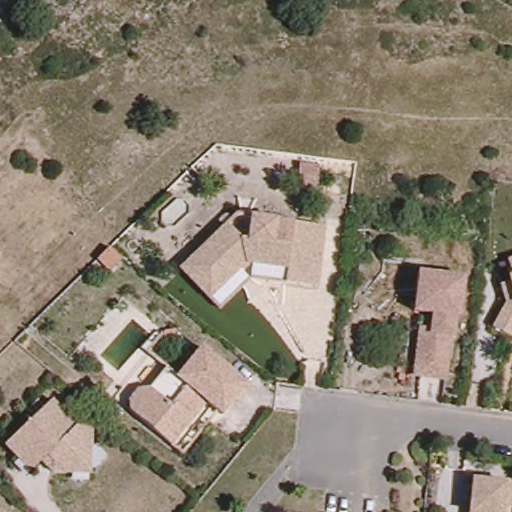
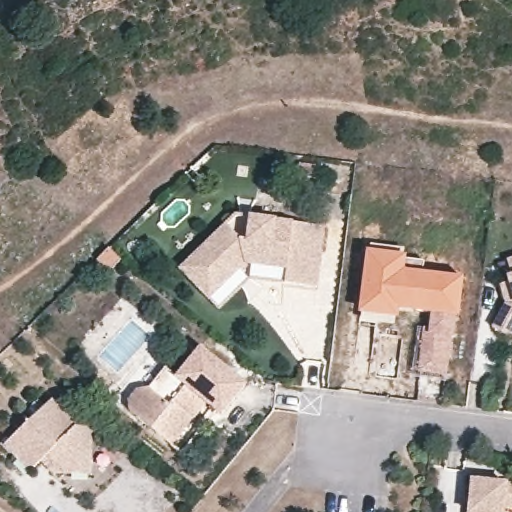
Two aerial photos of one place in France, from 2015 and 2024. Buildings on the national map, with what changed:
unchanged [(311,287),(281,283),(283,268),(241,263),(204,298),(176,268),(221,225),(231,215),(246,217),(319,226),(311,287)]
new [(413,273),(409,310),(400,309),(398,319),(361,314),(368,250),(369,241),(407,245),(407,257),(425,262),(424,275),(413,273)]
unchanged [(510,337),(491,329),(503,301),(500,290),(498,282),(508,279),(507,275),(510,274),(506,258),(512,256),(512,331),(510,337)]
unchanged [(409,378),(415,332),(426,334),(428,318),(408,317),(413,273),(465,281),(459,322),(448,382),(409,378)]
unchanged [(170,448),(129,414),(128,402),(136,392),(148,391),(166,370),(178,379),(201,352),(245,390),(221,418),(216,414),(181,457),(170,448)]
unchanged [(30,471),(5,445),(51,400),(76,426),(91,426),(91,437),(90,465),(80,465),(70,473),(53,473),(41,461),(30,471)]
unchanged [(499,512),(465,512),(467,492),(468,479),(481,481),(512,484),(512,508),(499,507),(499,512)]
unchanged [(499,512),(499,507),(512,508),(512,512),(499,512)]

